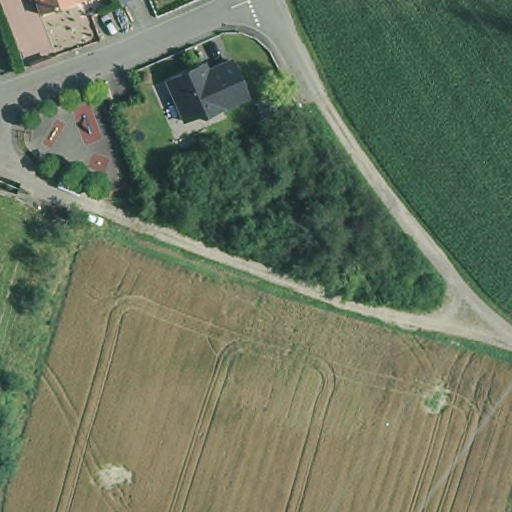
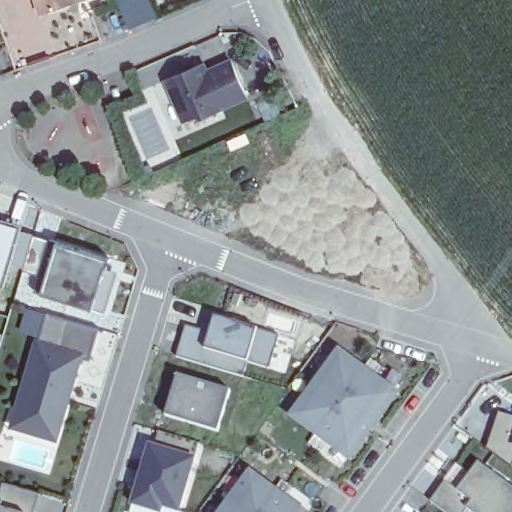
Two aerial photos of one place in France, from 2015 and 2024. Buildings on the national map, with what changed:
unchanged [(41,17),(35,0),(91,0),(76,5),(41,17)]
new [(147,0),(155,19),(129,29),(117,0),(147,0)]
unchanged [(204,67),(207,75),(232,64),(247,100),(222,110),(223,112),(205,120),(203,116),(185,124),(167,82),(204,67)]
new [(112,270),(117,272),(104,315),(94,312),(38,295),(55,239),(116,257),(112,270)]
new [(90,361),(82,358),(57,443),(7,429),(35,338),(39,339),(47,314),(98,328),(90,361)]
new [(269,370),(248,363),(244,377),(177,358),(186,326),(210,332),(214,316),(258,328),(280,335),(269,370)]
new [(340,355),(397,397),(350,461),(294,420),(340,355)]
new [(219,433),(165,416),(179,375),(230,391),(219,433)]
new [(487,450),(499,413),(512,417),(512,469),(487,450)]
new [(197,458),(200,458),(183,512),(146,512),(128,506),(147,440),(155,443),(159,431),(199,443),(197,458)]
new [(445,485),(462,497),(483,469),(512,490),(512,512),(441,512),(431,505),(445,485)]
new [(251,477),(299,512),(225,512),(251,477)]
new [(0,494),(3,482),(40,492),(34,512),(0,512),(0,494)]

